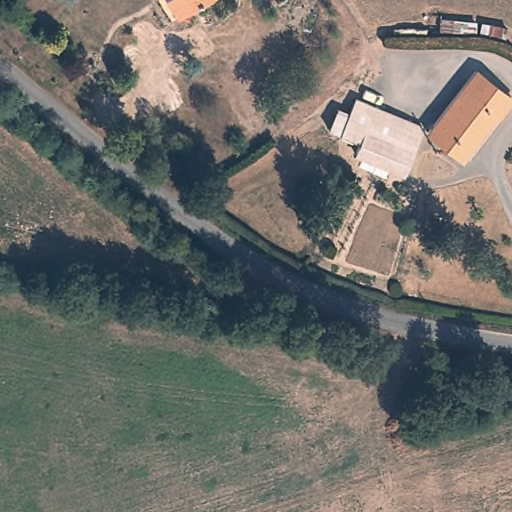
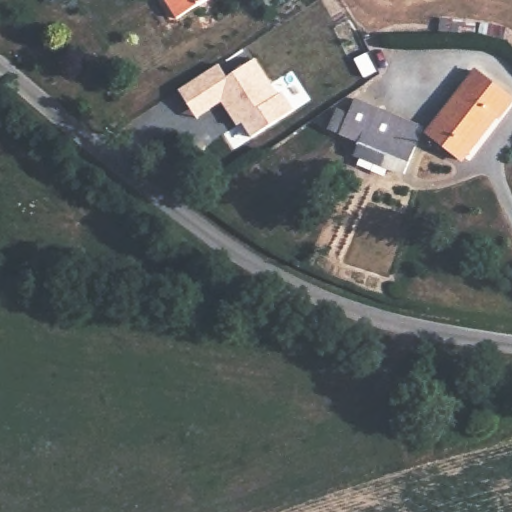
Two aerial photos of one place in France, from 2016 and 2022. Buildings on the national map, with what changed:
unchanged [(163,0),(221,0),(180,27),(162,0),(163,0)]
new [(188,107),(178,93),(218,66),(226,79),(253,60),(278,95),(282,92),(294,110),(253,139),(242,124),(238,126),(221,103),(197,120),(188,107)]
unchanged [(512,104),(512,108),(501,122),(497,120),(466,165),(428,137),(474,75),(512,104)]
unchanged [(352,160),(356,151),(340,141),(331,139),(339,120),(349,122),(355,102),(426,130),(414,170),(407,169),(404,185),(352,160)]

